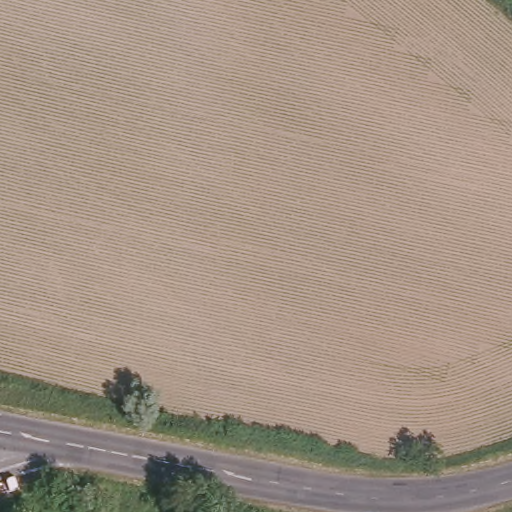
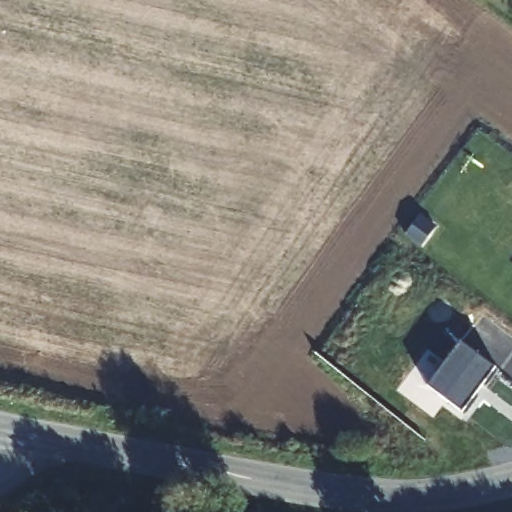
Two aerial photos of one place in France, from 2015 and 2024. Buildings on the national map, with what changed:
new [(499,369),(486,387),(484,384),(477,393),(480,396),(466,414),(427,385),(460,341),(499,369)]

